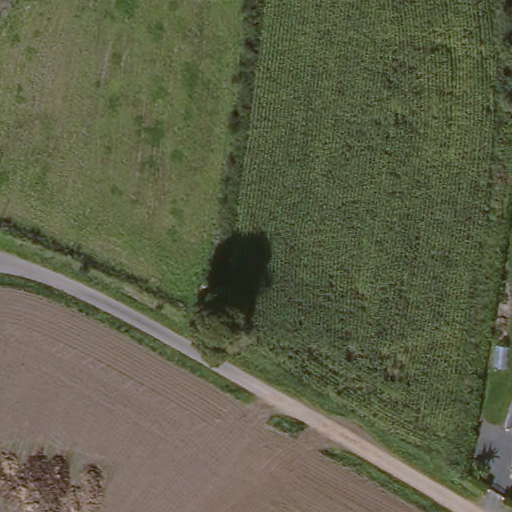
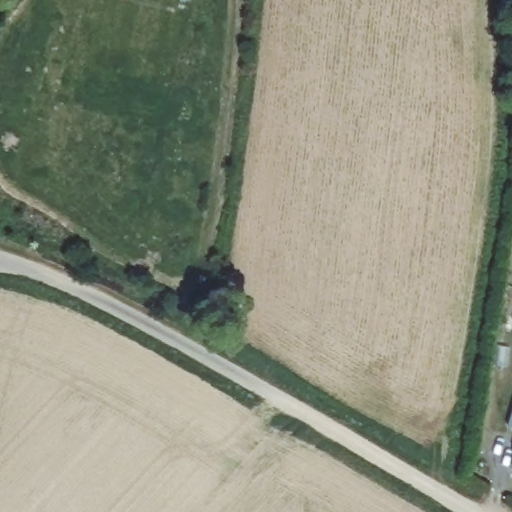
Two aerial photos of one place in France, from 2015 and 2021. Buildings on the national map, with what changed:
unchanged [(510,423),(512,416),(512,424),(510,423)]
unchanged [(510,467),(512,459),(512,468),(510,467)]

